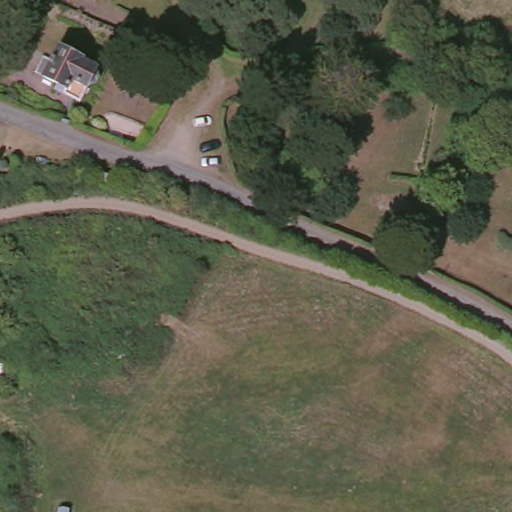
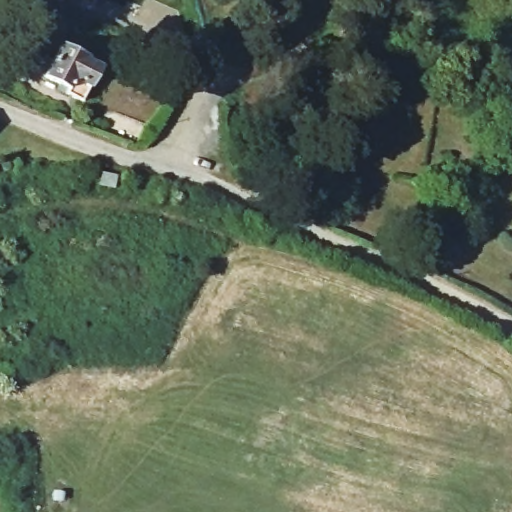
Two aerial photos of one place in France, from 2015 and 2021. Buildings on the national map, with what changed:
unchanged [(44,78),(61,46),(83,59),(82,61),(99,69),(81,103),(57,91),(59,85),(44,78)]

